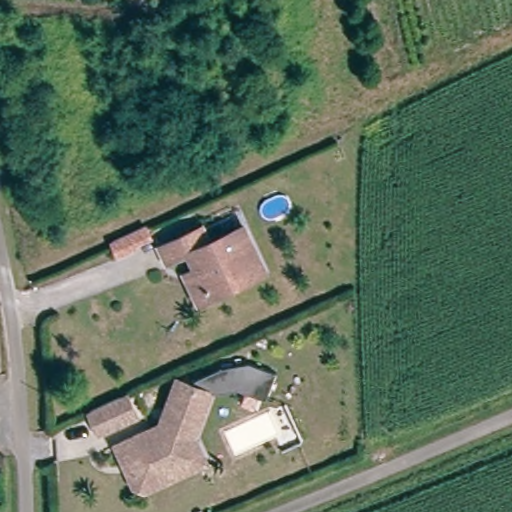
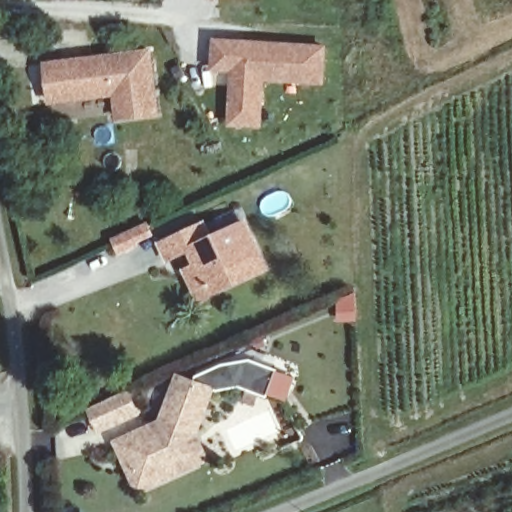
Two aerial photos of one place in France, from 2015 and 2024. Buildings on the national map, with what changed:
new [(205,1),(204,0),(210,0),(205,1)]
new [(210,37),(327,44),(325,86),(264,83),(262,127),(225,126),(228,74),(207,72),(210,37)]
new [(115,121),(113,97),(47,106),(42,61),(153,47),(161,115),(115,121)]
unchanged [(186,268),(196,264),(189,247),(169,257),(160,241),(201,222),(209,237),(242,221),(263,266),(242,276),(200,296),(186,268)]
unchanged [(207,462),(197,466),(159,484),(148,484),(139,482),(131,473),(117,445),(162,424),(179,379),(195,385),(196,379),(222,367),(250,357),(276,367),(266,395),(238,383),(217,393),(212,392),(204,414),(196,437),(207,462)]
unchanged [(132,418),(100,433),(90,411),(121,396),(132,418)]

